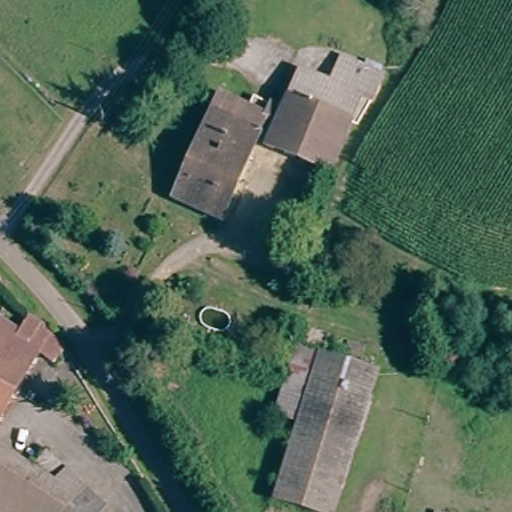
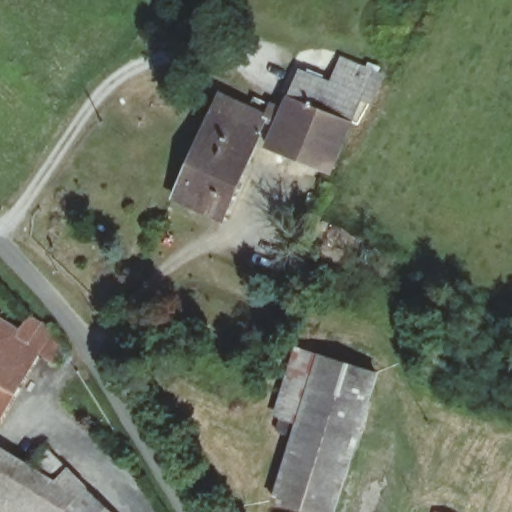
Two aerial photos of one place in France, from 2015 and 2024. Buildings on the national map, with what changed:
unchanged [(262,145),(295,74),(326,88),(341,57),(346,59),(355,39),(391,55),(381,75),(376,73),(361,105),(357,103),(325,174),(262,145)]
unchanged [(170,194),(213,107),(225,111),(230,98),(262,114),(256,126),(260,128),(256,135),(216,216),(170,194)]
unchanged [(496,324),(503,305),(512,309),(512,330),(496,324)]
unchanged [(25,314),(49,330),(46,335),(60,344),(53,357),(40,348),(0,413),(0,324),(14,332),(25,314)]
unchanged [(290,429),(265,422),(287,344),(370,367),(329,512),(313,512),(270,499),(290,429)]
unchanged [(40,445),(125,511),(125,512),(0,512),(0,449),(27,465),(40,445)]

